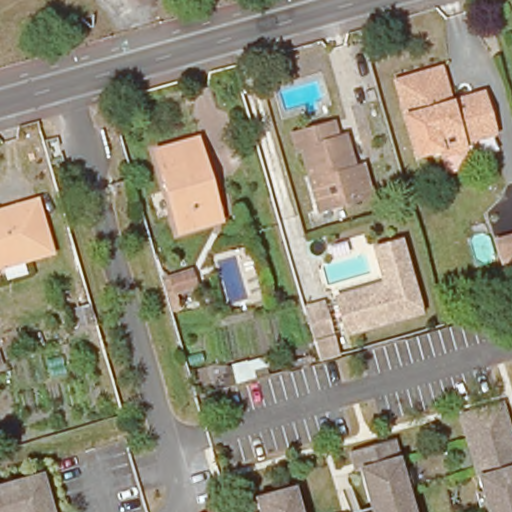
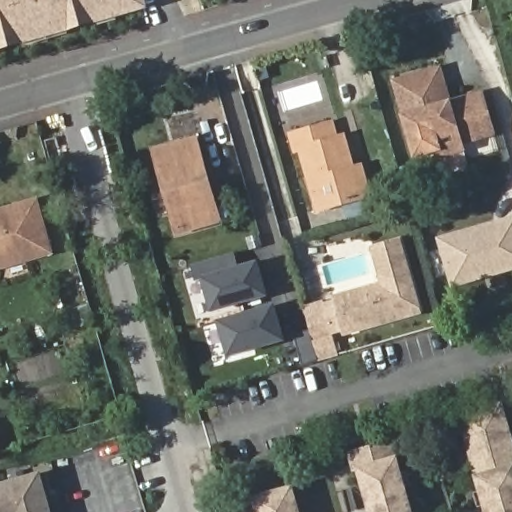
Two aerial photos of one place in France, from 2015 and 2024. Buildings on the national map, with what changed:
new [(149,8),(0,50),(0,0),(147,0),(149,8)]
unchanged [(392,84),(438,71),(443,89),(447,105),(433,109),(429,93),(397,102),(392,84)]
unchanged [(429,93),(433,109),(447,105),(476,97),(488,137),(458,145),(460,152),(434,159),(432,152),(412,158),(397,102),(429,93)]
unchanged [(368,196),(357,200),(315,212),(298,153),(290,154),(286,138),(329,126),(332,140),(340,138),(350,172),(361,169),(368,196)]
unchanged [(208,226),(174,234),(151,154),(183,143),(194,140),(199,159),(206,183),(217,224),(208,226)]
unchanged [(0,270),(0,213),(8,210),(34,203),(36,210),(47,248),(49,255),(23,262),(0,270)]
new [(437,244),(488,230),(499,227),(512,224),(512,273),(450,291),(437,244)]
demolished [(485,245),(512,238),(512,274),(495,278),(485,245)]
unchanged [(397,322),(344,338),(333,300),(380,286),(369,251),(398,243),(416,311),(418,316),(397,322)]
new [(236,270),(252,266),(256,265),(260,276),(265,297),(213,312),(204,281),(197,283),(193,268),(232,256),(236,270)]
unchanged [(321,298),(336,354),(317,360),(302,305),(321,298)]
unchanged [(87,301),(94,326),(89,328),(91,339),(80,342),(76,329),(71,330),(65,307),(87,301)]
new [(273,309),(276,320),(283,343),(228,358),(218,324),(269,310),(273,309)]
new [(309,334),(316,360),(316,365),(301,369),(293,339),(309,334)]
demolished [(266,355),(271,375),(220,387),(218,368),(266,355)]
unchanged [(512,464),(510,465),(512,472),(512,500),(508,501),(512,512),(483,512),(456,415),(464,412),(496,403),(512,456),(512,464)]
unchanged [(408,512),(376,512),(379,511),(376,498),(365,501),(356,468),(352,469),(350,463),(346,450),(387,439),(408,512)]
unchanged [(38,472),(50,512),(0,512),(0,483),(38,472)]
unchanged [(288,487),(296,512),(256,512),(251,498),(288,487)]

